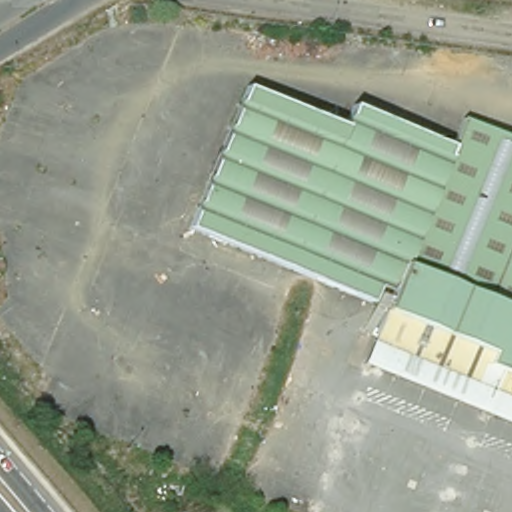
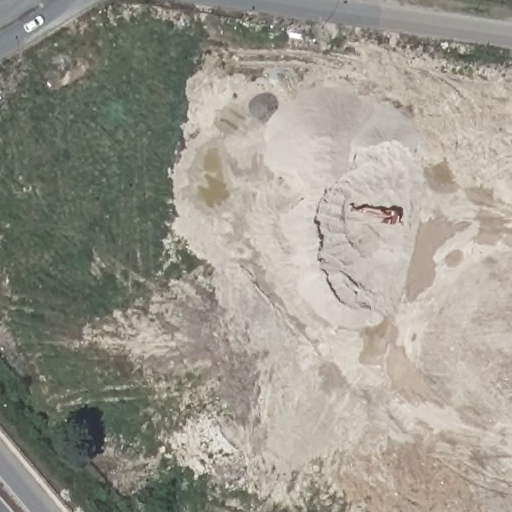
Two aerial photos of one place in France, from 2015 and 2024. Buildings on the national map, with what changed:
demolished [(377,287),(370,302),(282,265),(273,288),(181,250),(190,227),(189,227),(207,182),(209,179),(219,155),(247,86),(345,125),(353,105),(452,146),(463,118),(512,138),(512,398),(372,341),(391,293),(377,287)]

